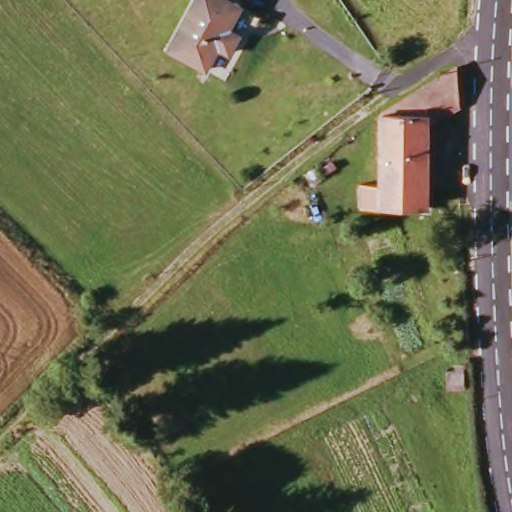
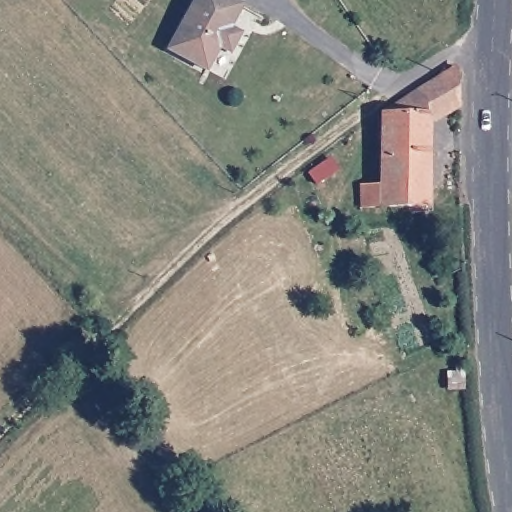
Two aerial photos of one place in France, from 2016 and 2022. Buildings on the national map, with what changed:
unchanged [(166,50),(192,0),(225,0),(235,5),(227,25),(240,34),(229,53),(216,44),(203,67),(166,50)]
unchanged [(458,67),(460,112),(435,117),(430,217),(378,217),(378,208),(369,208),(368,178),(380,177),(379,122),(458,67)]
unchanged [(436,367),(435,357),(445,357),(445,351),(453,351),(454,367),(436,367)]

